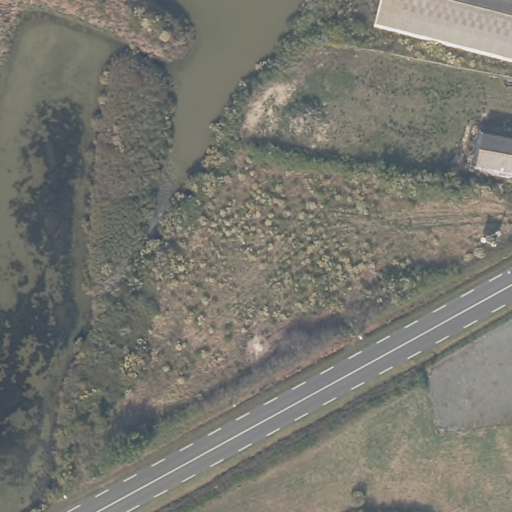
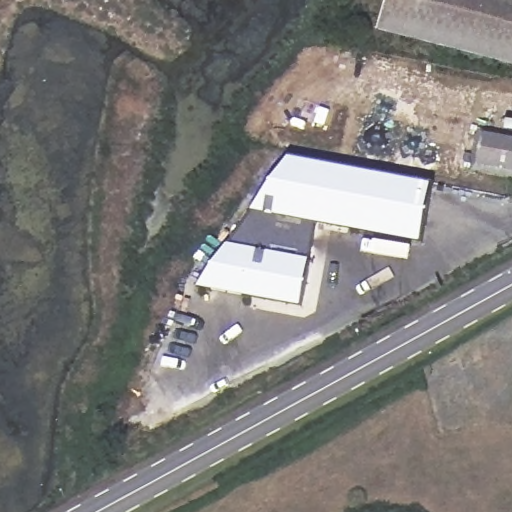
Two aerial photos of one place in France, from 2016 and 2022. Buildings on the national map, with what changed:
unchanged [(384,0),(512,0),(512,59),(377,24),(384,0)]
unchanged [(512,178),(474,170),(480,127),(512,134),(512,178)]
new [(311,258),(302,307),(197,287),(290,156),(432,183),(421,244),(317,224),(311,258)]

